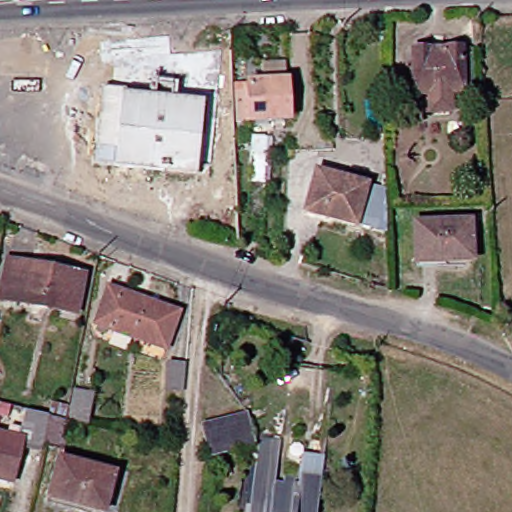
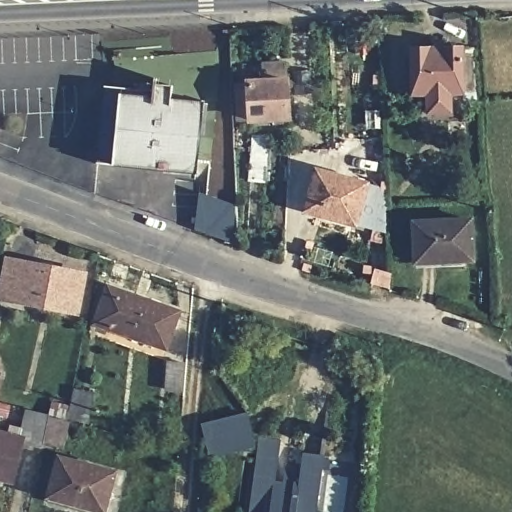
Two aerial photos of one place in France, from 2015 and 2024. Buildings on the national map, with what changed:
unchanged [(408,99),(408,54),(468,52),(471,107),(460,107),(460,115),(426,115),(408,115),(408,99)]
unchanged [(254,82),(292,80),(294,117),(256,120),(240,120),(239,87),(254,86),(254,82)]
unchanged [(158,102),(208,107),(202,176),(120,168),(121,152),(104,151),(109,89),(159,94),(158,102)]
unchanged [(305,211),(316,169),(387,187),(388,204),(390,233),(305,211)]
new [(202,192),(237,206),(238,243),(196,227),(202,192)]
unchanged [(417,262),(415,221),(472,219),(474,260),(417,262)]
unchanged [(89,277),(82,317),(5,303),(12,263),(89,277)]
unchanged [(171,353),(102,328),(115,291),(185,315),(171,353)]
unchanged [(168,361),(184,362),(182,390),(166,388),(168,361)]
unchanged [(100,396),(95,425),(77,422),(82,392),(100,396)]
unchanged [(262,445),(216,457),(207,425),(254,413),(262,445)]
unchanged [(30,452),(38,415),(55,420),(70,424),(63,451),(49,447),(47,457),(30,452)]
unchanged [(27,443),(17,483),(0,478),(0,436),(27,443)]
unchanged [(256,512),(242,510),(249,460),(263,461),(267,436),(287,438),(281,481),(289,482),(291,466),(307,467),(306,479),(327,482),(323,512),(255,512),(256,512)]
unchanged [(121,477),(111,512),(91,512),(84,510),(85,507),(55,498),(65,462),(121,477)]

